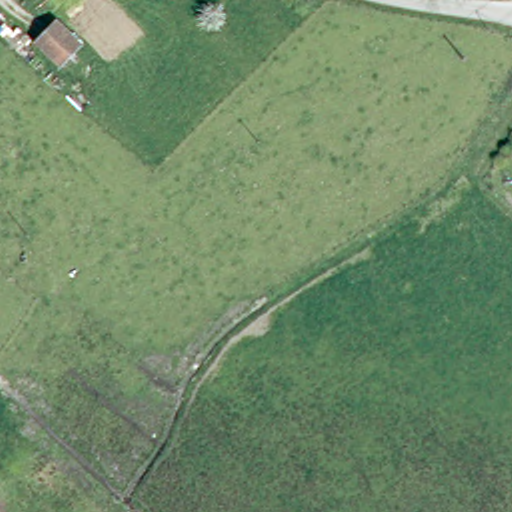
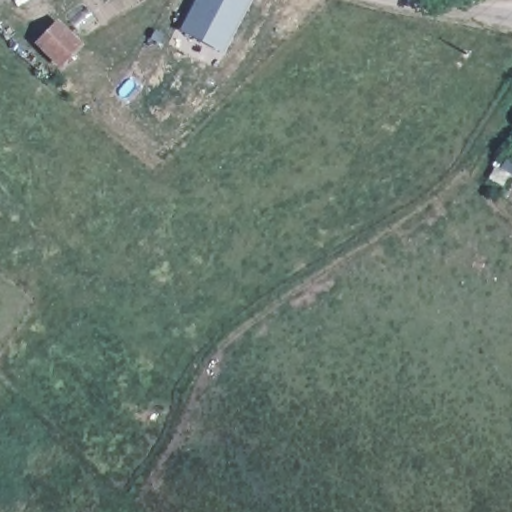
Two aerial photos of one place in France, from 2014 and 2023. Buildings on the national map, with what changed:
new [(197,0),(248,0),(220,53),(180,31),(197,0)]
unchanged [(40,30),(67,21),(79,55),(52,64),(40,30)]

